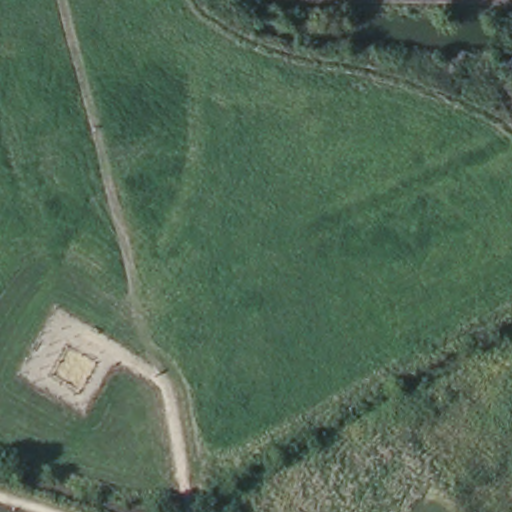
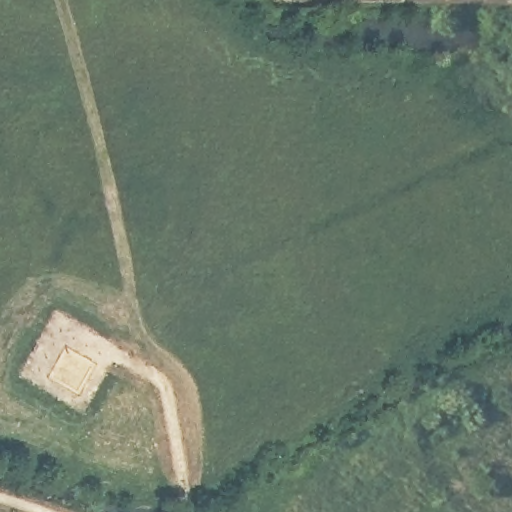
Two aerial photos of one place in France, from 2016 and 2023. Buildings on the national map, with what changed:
[]

